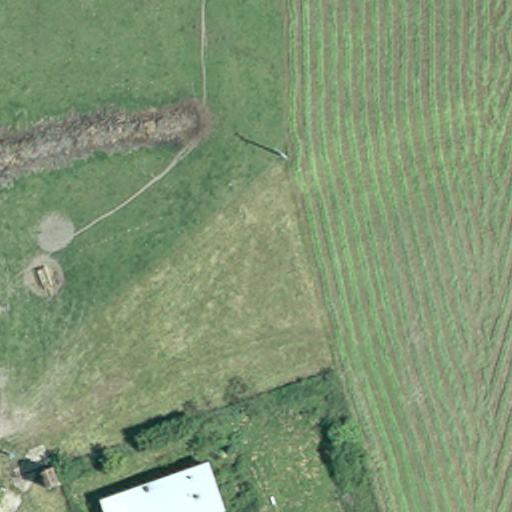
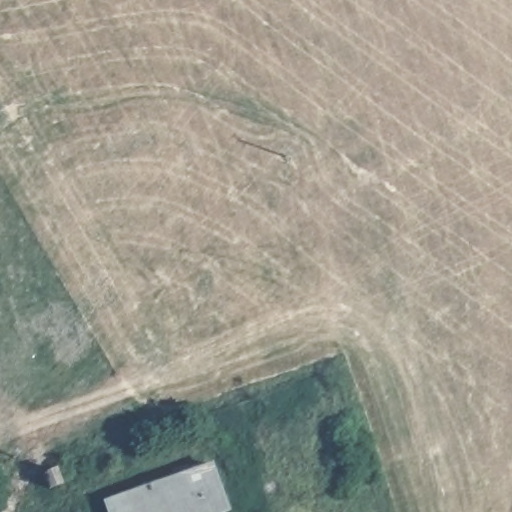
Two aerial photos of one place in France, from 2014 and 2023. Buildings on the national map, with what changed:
unchanged [(56,470),(62,485),(50,489),(44,474),(56,470)]
unchanged [(215,475),(229,512),(110,512),(215,475)]

